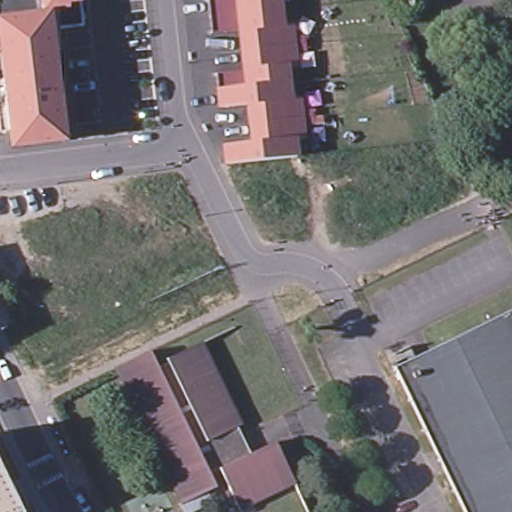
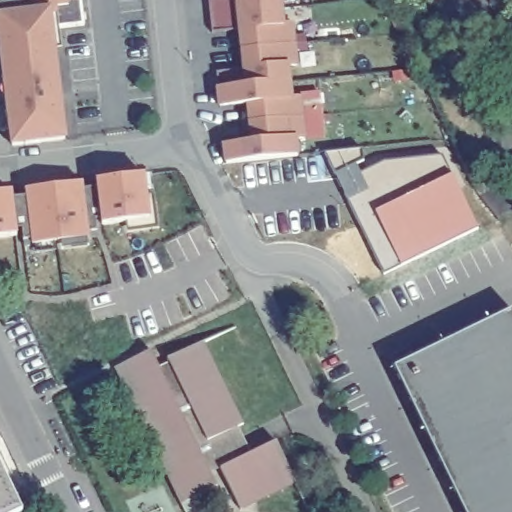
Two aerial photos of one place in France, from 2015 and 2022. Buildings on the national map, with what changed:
unchanged [(87,2),(70,5),(70,13),(50,16),(63,142),(13,147),(11,131),(3,132),(0,109),(0,86),(5,86),(0,53),(0,0),(87,0),(87,2)]
unchanged [(229,167),(227,144),(253,142),(249,107),(223,110),(218,73),(247,70),(242,33),(215,35),(212,0),(281,0),(284,25),(293,24),(298,67),(289,68),(292,101),(300,100),(305,139),(295,140),(297,159),(229,167)]
new [(363,147),(364,158),(357,161),(362,170),(385,160),(443,153),(477,225),(382,272),(335,171),(323,151),(363,147)]
new [(14,195),(26,194),(25,186),(83,178),(84,184),(97,183),(96,176),(145,170),(150,214),(102,218),(101,211),(95,212),(97,227),(88,227),(90,232),(33,241),(30,237),(24,237),(23,226),(17,226),(17,229),(0,232),(0,187),(12,186),(14,195)]
unchanged [(512,310),(512,312),(512,512),(462,512),(392,368),(512,310)]
unchanged [(269,496),(255,503),(238,511),(217,468),(165,368),(163,363),(197,345),(240,429),(231,434),(242,456),(262,446),(271,441),(275,448),(292,485),(269,496)]
unchanged [(212,488),(177,505),(110,368),(142,352),(153,373),(205,474),(212,488)]
unchanged [(205,474),(153,373),(165,368),(217,468),(205,474)]
unchanged [(0,512),(0,478),(17,512),(0,512)]

